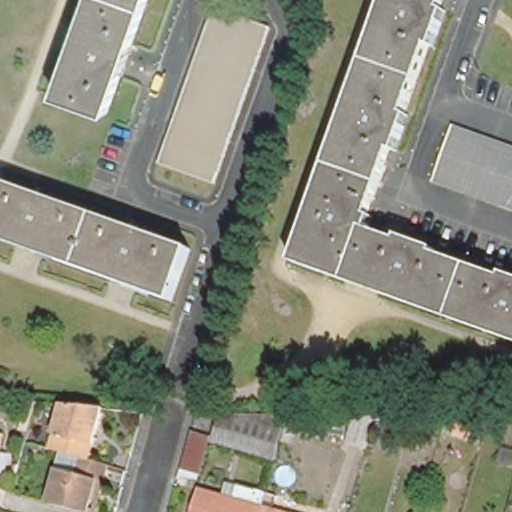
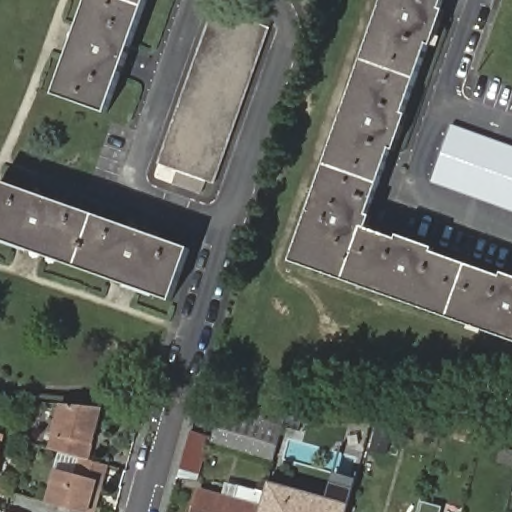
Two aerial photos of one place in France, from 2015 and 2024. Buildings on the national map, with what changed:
unchanged [(91,0),(152,0),(110,117),(56,96),(91,0)]
unchanged [(440,14),(445,16),(432,51),(428,49),(404,119),(408,120),(395,155),(391,154),(385,170),(373,204),(368,220),(372,221),(367,234),(380,240),(397,245),(399,241),(434,253),(432,258),(501,282),(503,278),(512,281),(512,345),(378,298),(344,286),(292,267),(315,201),(338,135),(387,0),(446,0),(440,14)]
unchanged [(213,10),(269,31),(212,186),(155,165),(213,10)]
unchanged [(512,211),(431,182),(452,124),(512,146),(512,211)]
unchanged [(0,244),(0,191),(2,185),(82,214),(193,255),(174,305),(0,244)]
unchanged [(64,411),(97,414),(98,414),(97,416),(83,464),(66,459),(54,456),(45,453),(56,411),(57,410),(64,411)]
unchanged [(279,440),(274,458),(274,460),(213,442),(220,414),(272,415),(286,415),(286,417),(297,419),(292,437),(291,443),(279,440)]
unchanged [(375,416),(366,448),(347,443),(354,416),(375,416)]
unchanged [(445,416),(452,418),(450,427),(443,425),(445,416)]
unchanged [(442,421),(437,440),(424,436),(429,418),(442,421)]
unchanged [(486,426),(481,443),(458,436),(463,419),(486,426)]
unchanged [(209,436),(197,479),(177,477),(190,431),(209,436)]
unchanged [(512,464),(498,460),(501,449),(512,452),(512,464)]
unchanged [(44,508),(53,475),(49,474),(54,456),(66,459),(83,464),(102,469),(102,470),(97,487),(91,512),(59,512),(52,510),(44,508)]
new [(264,492),(268,481),(327,497),(334,472),(357,478),(350,504),(348,512),(259,512),(260,507),(264,492)]
unchanged [(194,512),(200,490),(223,496),(226,482),(237,485),(264,492),(260,507),(259,512),(194,512)]
new [(442,507),(441,512),(418,512),(421,501),(442,507)]
demolished [(259,512),(260,507),(276,512),(259,512)]

